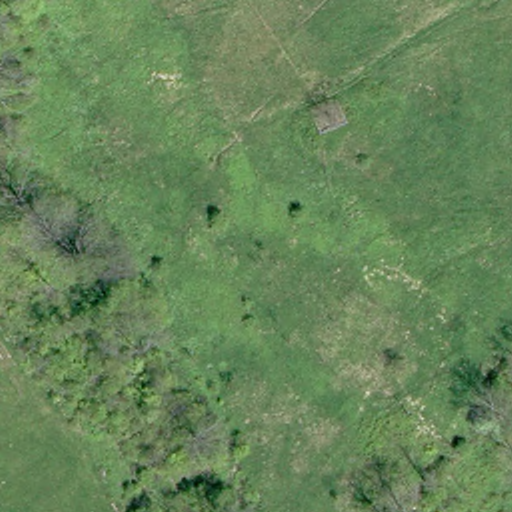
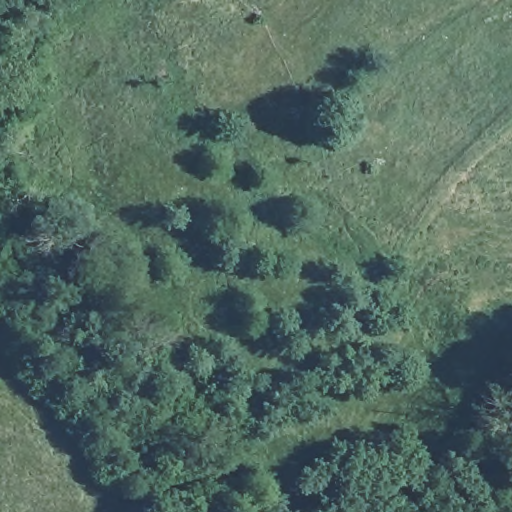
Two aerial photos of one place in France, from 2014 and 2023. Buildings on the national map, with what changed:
unchanged [(307,112),(334,100),(346,121),(318,135),(307,112)]

